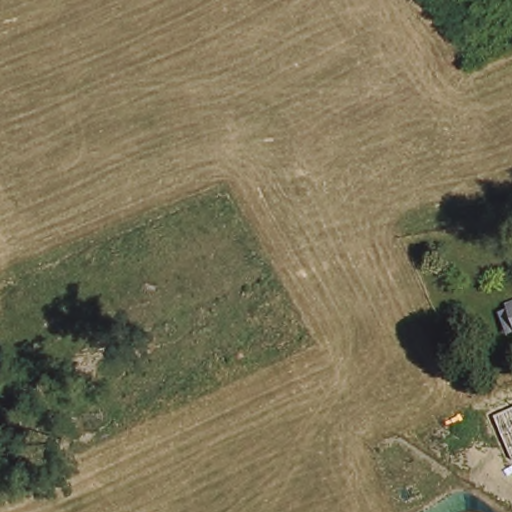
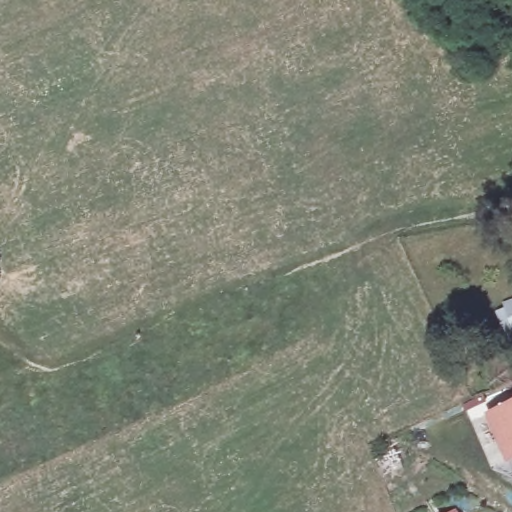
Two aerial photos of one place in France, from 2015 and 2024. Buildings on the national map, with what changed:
unchanged [(500,297),(512,292),(512,327),(500,297)]
new [(512,401),(512,462),(507,463),(485,413),(512,401)]

